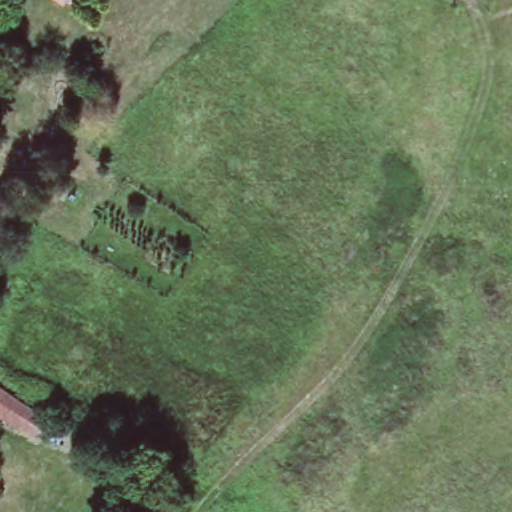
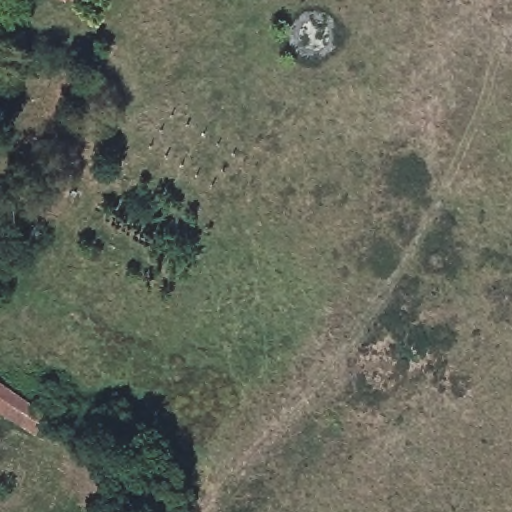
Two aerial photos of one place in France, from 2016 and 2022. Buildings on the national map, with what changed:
unchanged [(12,382),(0,405),(0,375),(12,382)]

